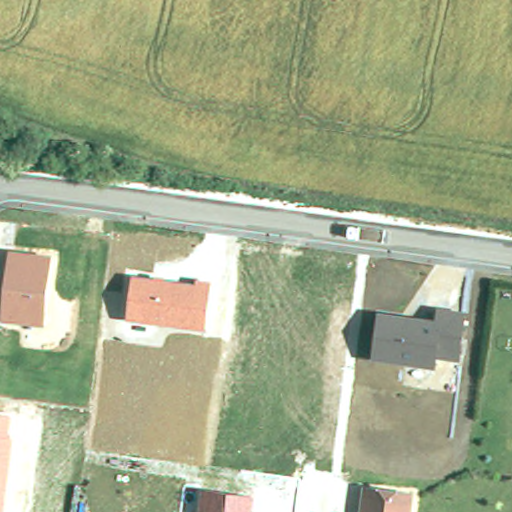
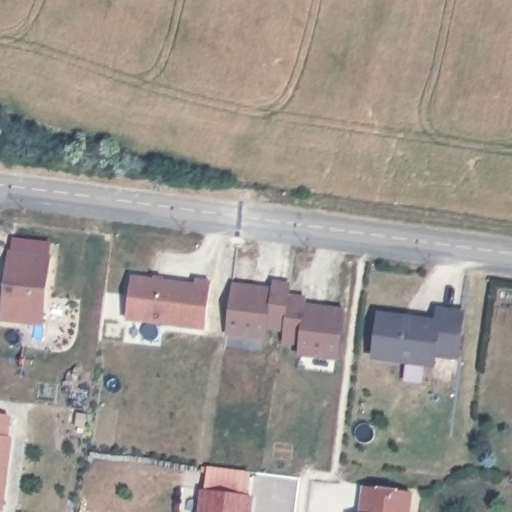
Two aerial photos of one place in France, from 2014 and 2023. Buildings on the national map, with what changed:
unchanged [(44,325),(1,320),(9,251),(51,255),(44,325)]
unchanged [(126,322),(131,276),(196,284),(196,280),(211,282),(204,332),(126,322)]
new [(233,283),(272,288),(273,280),(292,283),(290,294),(284,334),(268,332),(267,339),(226,334),(233,283)]
new [(299,343),(283,341),(284,334),(290,294),(307,296),(306,303),(347,309),(340,361),(298,355),(299,343)]
unchanged [(460,361),(437,358),(436,369),(372,361),(379,313),(435,319),(437,306),(467,310),(460,361)]
unchanged [(12,438),(2,510),(0,510),(0,413),(9,415),(8,437),(12,438)]
new [(209,466),(251,471),(248,495),(205,490),(209,466)]
unchanged [(364,484),(411,490),(408,512),(360,512),(364,484)]
unchanged [(251,512),(197,512),(200,490),(253,496),(251,512)]

